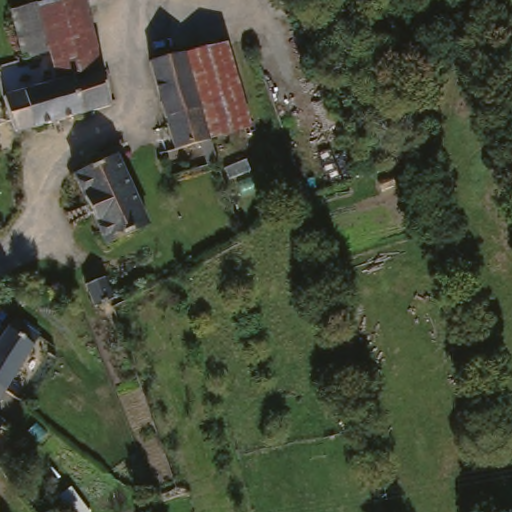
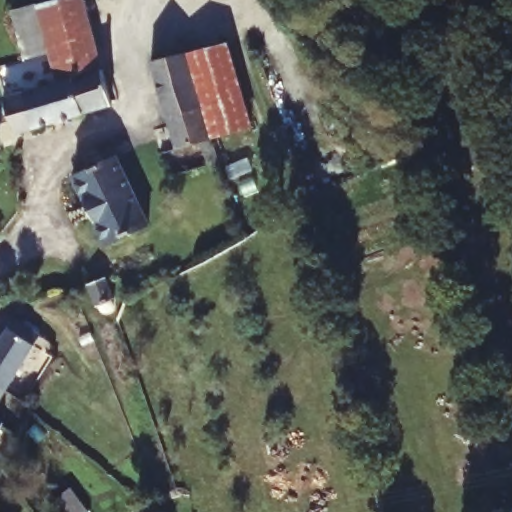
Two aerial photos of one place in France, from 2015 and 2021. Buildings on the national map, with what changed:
unchanged [(50,53),(38,5),(59,0),(85,0),(102,70),(58,83),(50,53)]
unchanged [(50,53),(25,60),(12,12),(38,5),(50,53)]
unchanged [(231,37),(256,122),(215,135),(190,48),(231,37)]
unchanged [(215,135),(181,145),(156,57),(190,48),(215,135)]
unchanged [(112,106),(15,134),(4,98),(58,83),(102,70),(112,106)]
unchanged [(149,225),(106,244),(75,177),(116,157),(149,225)]
unchanged [(115,299),(96,307),(86,285),(105,277),(115,299)]
unchanged [(11,392),(0,385),(0,349),(21,319),(46,335),(11,392)]
unchanged [(0,410),(0,385),(11,392),(0,410)]
unchanged [(0,437),(0,417),(9,423),(0,437)]
unchanged [(69,512),(59,497),(71,488),(88,512),(69,512)]

